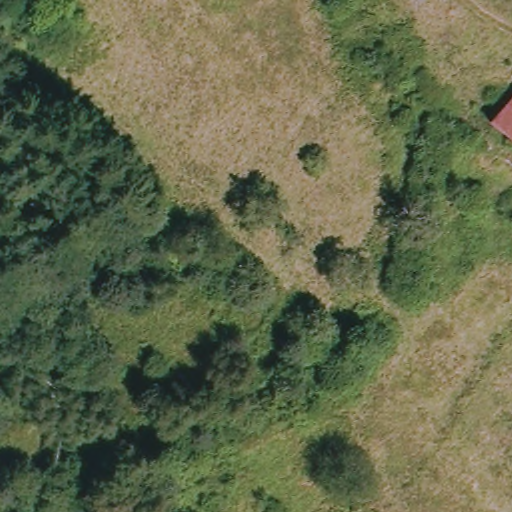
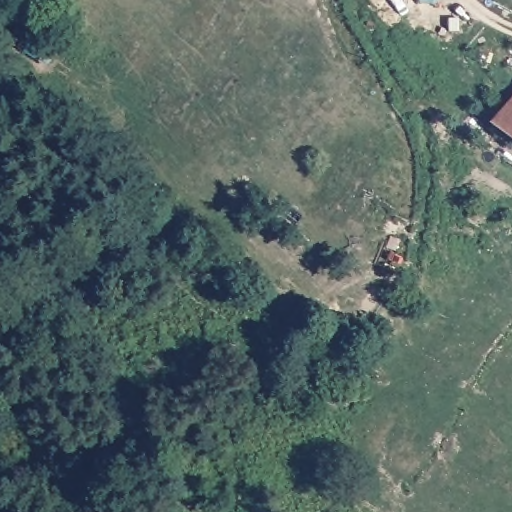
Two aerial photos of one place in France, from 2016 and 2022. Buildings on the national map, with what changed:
unchanged [(512,105),(512,146),(492,127),(512,105)]

